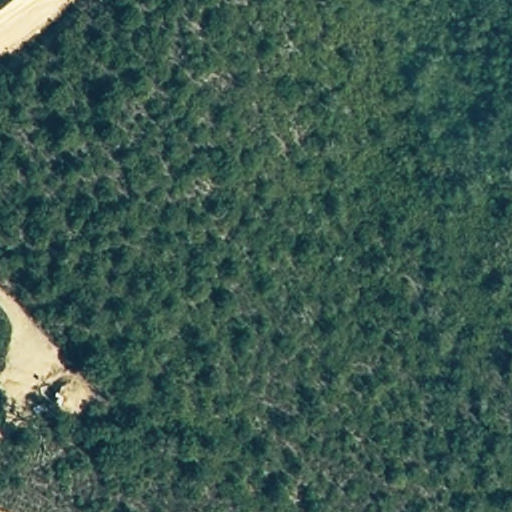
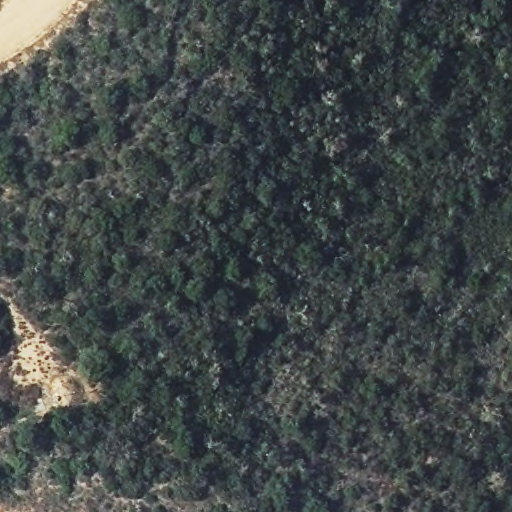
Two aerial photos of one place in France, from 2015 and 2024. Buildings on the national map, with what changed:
[]

